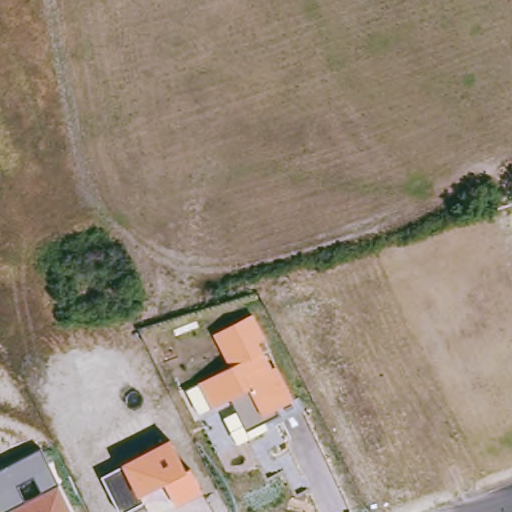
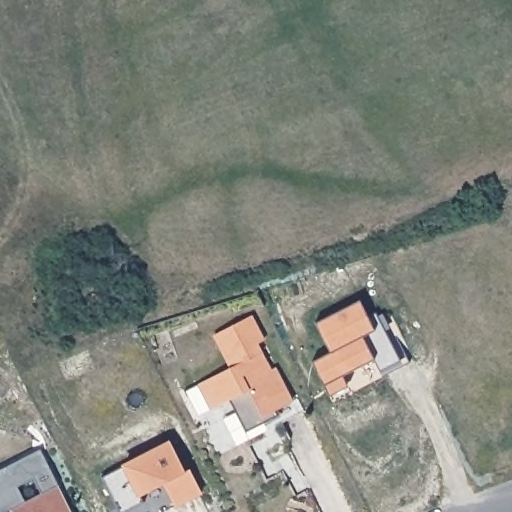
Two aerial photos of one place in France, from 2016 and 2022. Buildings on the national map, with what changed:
new [(380,373),(373,359),(342,375),(347,387),(330,395),(313,362),(331,353),(317,324),(359,303),(368,320),(377,315),(400,363),(380,373)]
unchanged [(231,368),(214,334),(252,315),(265,339),(258,342),(267,361),(271,368),(277,366),(295,400),(279,409),(282,414),(247,429),(230,398),(210,407),(198,384),(231,368)]
unchanged [(103,476),(123,465),(171,441),(185,472),(192,468),(205,492),(177,505),(165,483),(142,494),(145,501),(122,512),(121,512),(103,476)]
unchanged [(42,449),(72,512),(0,512),(0,471),(42,449)]

